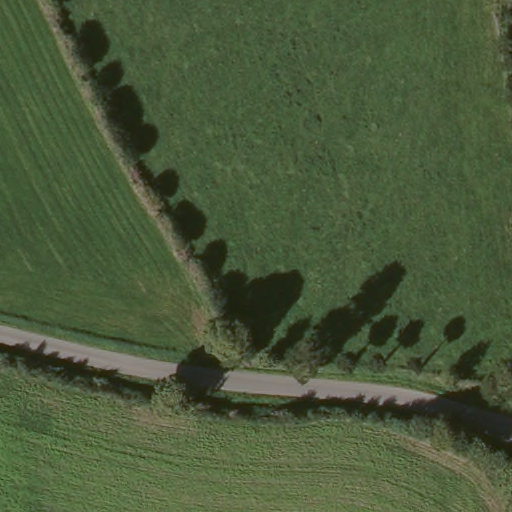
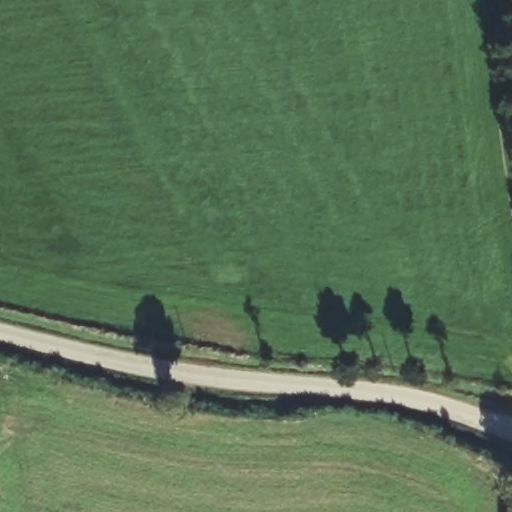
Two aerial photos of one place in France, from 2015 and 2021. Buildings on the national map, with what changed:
[]

